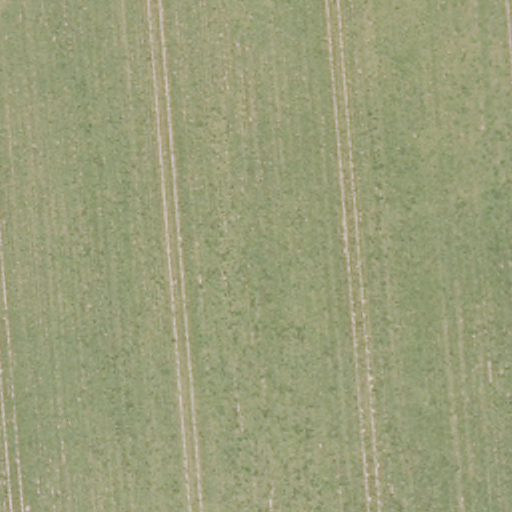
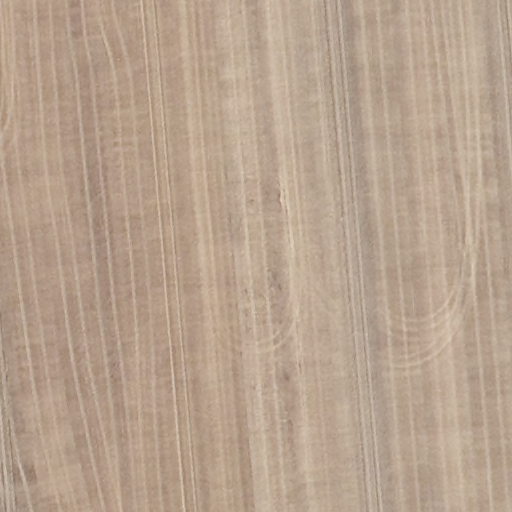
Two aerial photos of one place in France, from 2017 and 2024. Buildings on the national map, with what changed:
[]

